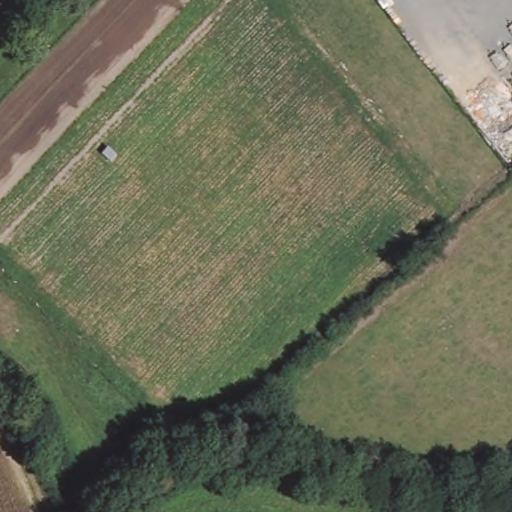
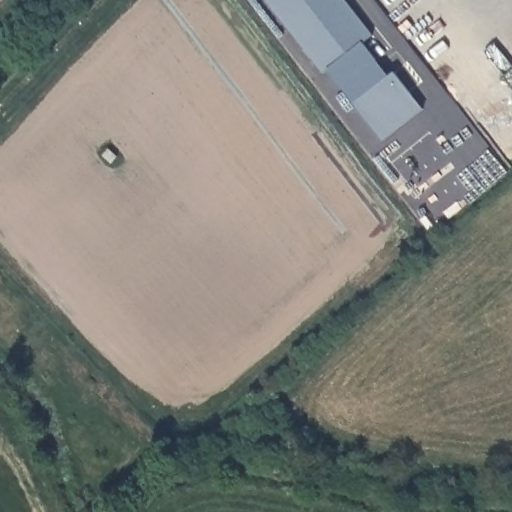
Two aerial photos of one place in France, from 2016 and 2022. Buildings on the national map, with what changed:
new [(419,110),(378,141),(324,70),(320,74),(263,0),(340,0),(369,36),(359,44),(372,60),(384,76),(390,72),(419,110)]

